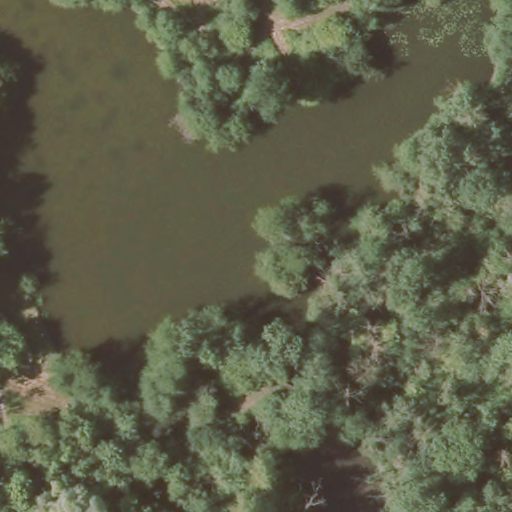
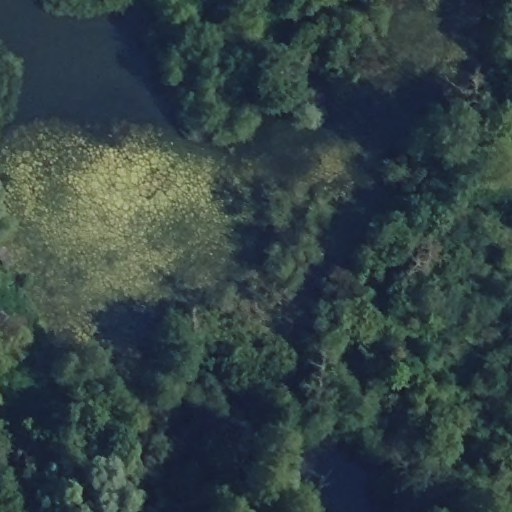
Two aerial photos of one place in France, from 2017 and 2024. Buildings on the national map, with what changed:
unchanged [(52,387),(40,397),(20,376),(31,364),(52,387)]

